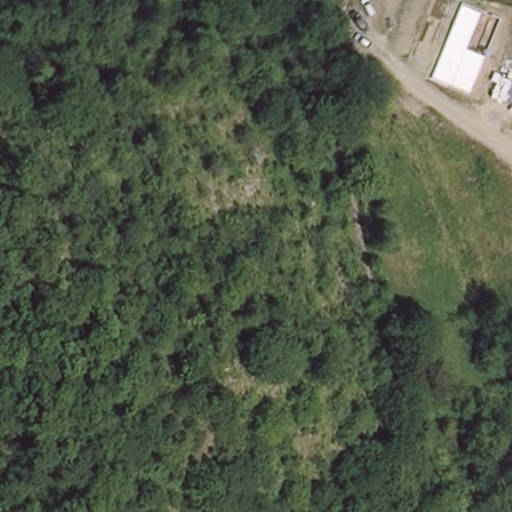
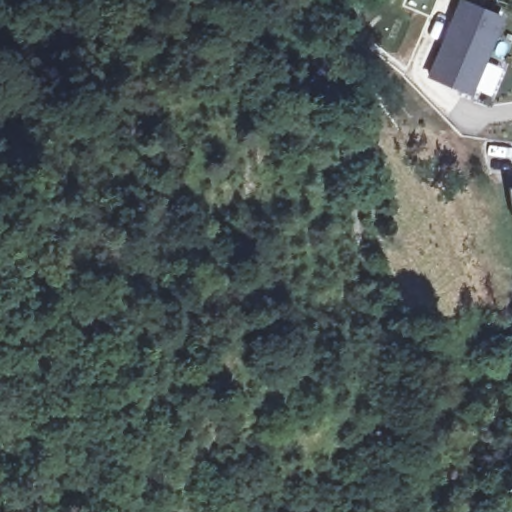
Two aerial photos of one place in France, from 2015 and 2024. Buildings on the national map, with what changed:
new [(467,0),(504,14),(472,96),(428,77),(457,0),(467,0)]
demolished [(450,26),(463,0),(489,0),(472,37),(450,26)]
demolished [(482,57),(495,35),(509,44),(496,66),(482,57)]
new [(512,186),(512,217),(509,187),(512,186)]

